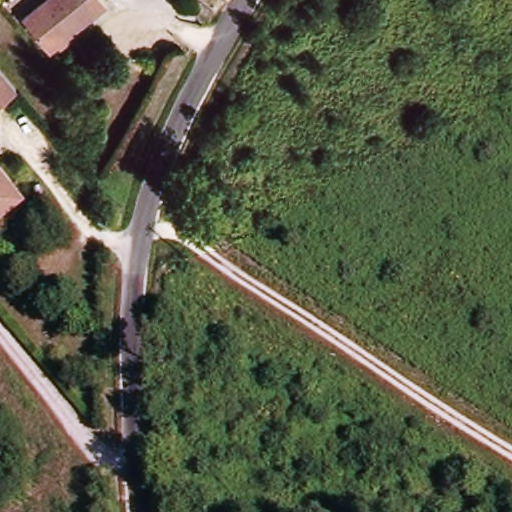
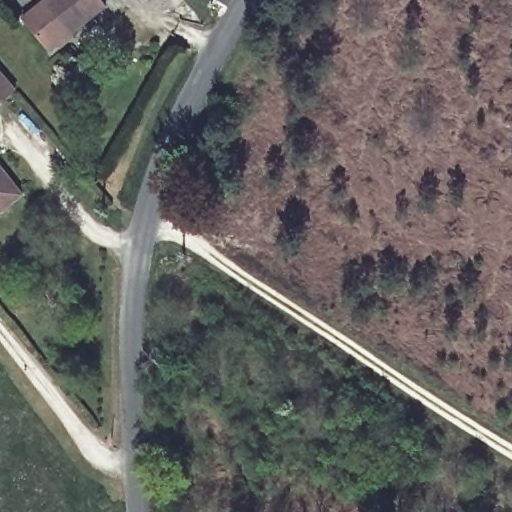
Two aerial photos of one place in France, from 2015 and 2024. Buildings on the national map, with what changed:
unchanged [(31,22),(56,0),(104,0),(111,7),(58,54),(31,22)]
unchanged [(15,89),(0,101),(0,71),(15,89)]
unchanged [(20,194),(0,209),(0,168),(20,194)]

